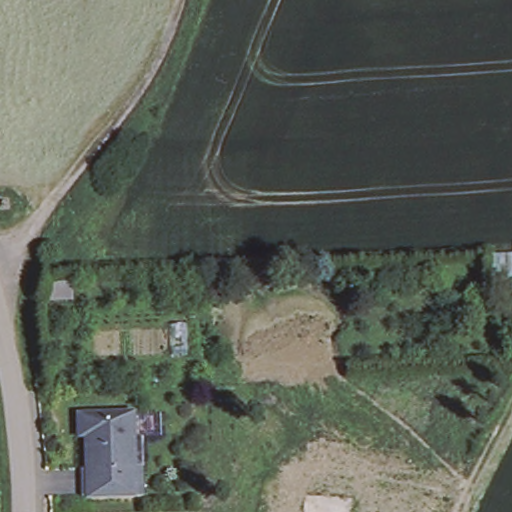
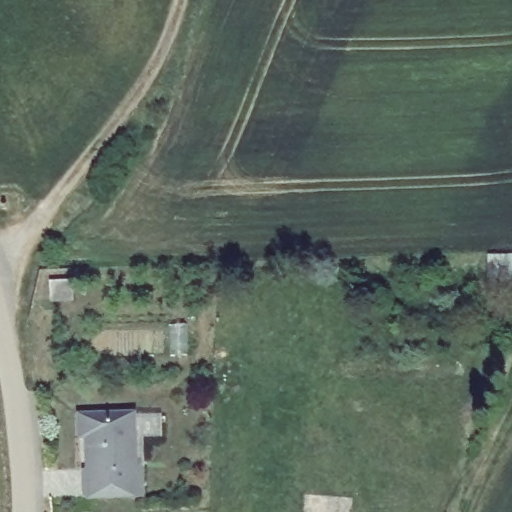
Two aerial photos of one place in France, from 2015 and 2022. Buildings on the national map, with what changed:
unchanged [(512,254),(512,277),(488,277),(488,254),(512,254)]
unchanged [(82,409),(138,408),(140,462),(146,462),(147,492),(91,493),(90,464),(93,464),(92,443),(92,432),(82,433),(82,409)]

